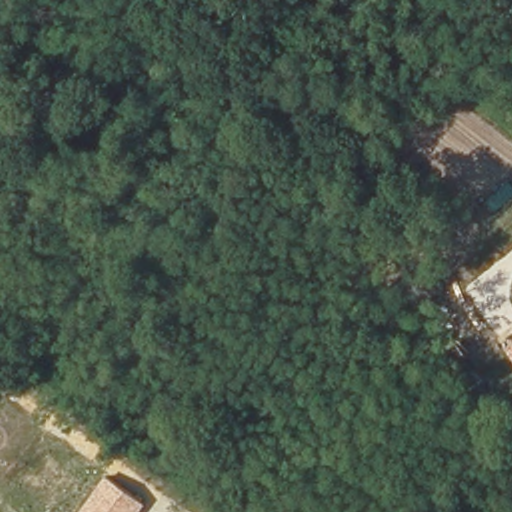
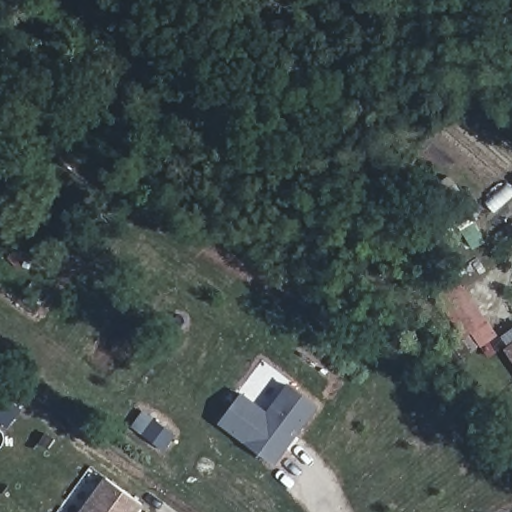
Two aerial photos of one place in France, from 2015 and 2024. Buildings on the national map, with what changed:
unchanged [(505,348),(512,343),(512,358),(505,348)]
new [(243,393),(269,411),(289,383),(322,406),(278,465),(221,424),(243,393)]
unchanged [(79,512),(106,476),(145,504),(139,512),(79,512)]

